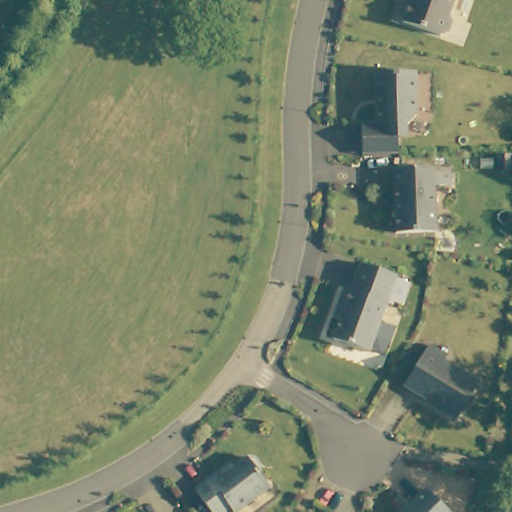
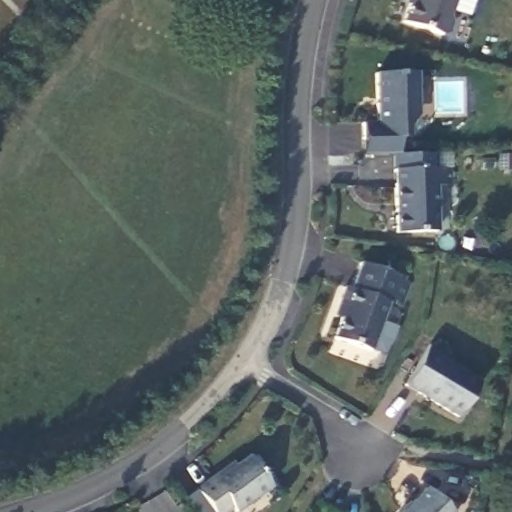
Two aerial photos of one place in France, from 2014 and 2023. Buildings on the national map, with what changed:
unchanged [(408,0),(451,0),(444,17),(447,25),(442,35),(436,38),(399,24),(408,0)]
unchanged [(365,124),(380,124),(378,75),(418,74),(420,116),(410,126),(400,127),(400,140),(400,155),(366,156),(365,140),(365,124)]
unchanged [(395,172),(450,170),(450,185),(435,186),(436,234),(396,235),(395,172)]
unchanged [(335,309),(341,293),(350,296),(360,267),(395,278),(395,280),(410,285),(401,309),(386,304),(378,325),(395,331),(390,345),(381,357),(369,353),(368,355),(335,342),(344,313),(335,309)]
unchanged [(405,389),(431,348),(445,356),(440,364),(475,385),(455,421),(405,389)]
unchanged [(220,476),(224,481),(245,465),(254,464),(260,471),(258,479),(268,491),(241,512),(229,512),(228,512),(206,512),(195,496),(220,476)]
unchanged [(448,512),(404,512),(426,491),(448,512)]

